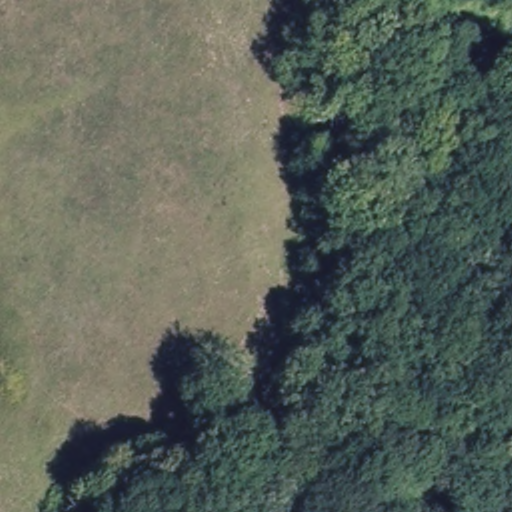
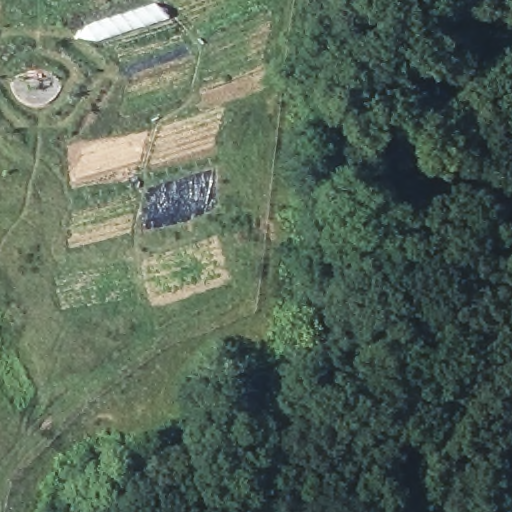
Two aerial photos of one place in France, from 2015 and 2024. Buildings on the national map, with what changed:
[]

